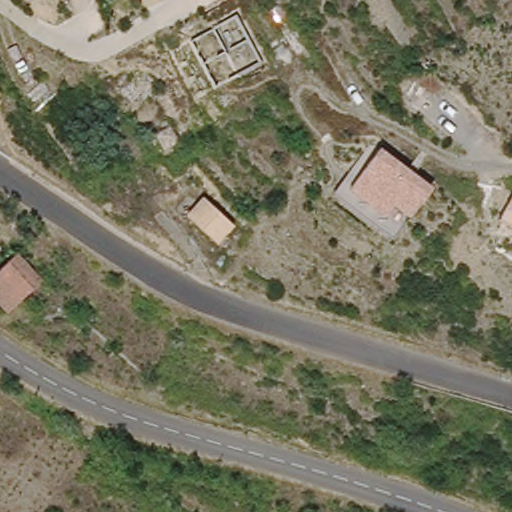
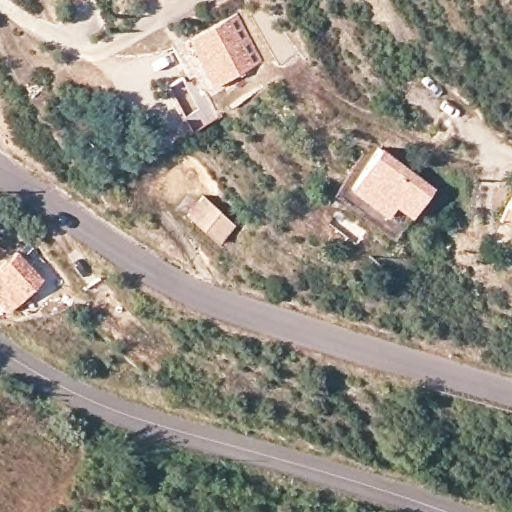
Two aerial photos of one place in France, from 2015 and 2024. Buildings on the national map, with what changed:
new [(238,12),(263,61),(213,90),(187,39),(238,12)]
unchanged [(378,145),(432,184),(408,215),(395,207),(385,215),(349,190),(378,145)]
unchanged [(512,193),(512,229),(496,220),(503,207),(512,193)]
unchanged [(202,197),(233,225),(216,244),(182,214),(202,197)]
unchanged [(51,279),(13,314),(0,299),(0,277),(27,253),(51,279)]

